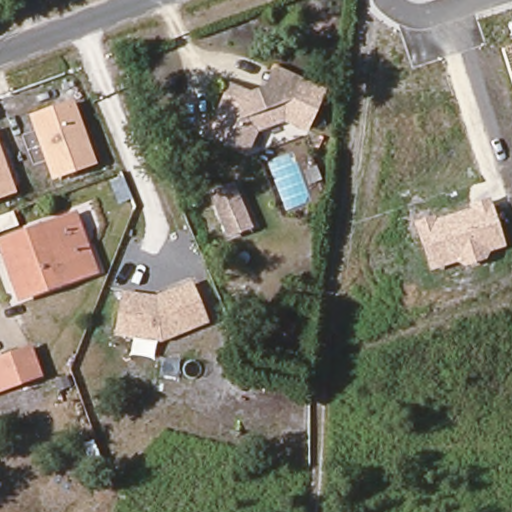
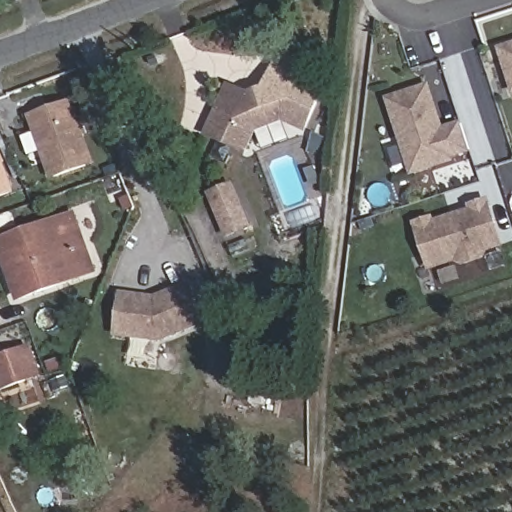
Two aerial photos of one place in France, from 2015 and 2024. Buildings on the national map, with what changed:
unchanged [(504,49),(512,47),(512,77),(504,49)]
unchanged [(243,90),(260,83),(269,65),(301,79),(317,86),(300,124),(278,113),(249,124),(239,146),(202,130),(223,81),(243,90)]
new [(410,178),(384,98),(430,83),(445,128),(462,122),(472,153),(454,158),(456,163),(410,178)]
unchanged [(95,164),(50,181),(28,115),(72,101),(95,164)]
unchanged [(0,198),(0,151),(15,192),(0,198)]
unchanged [(208,192),(230,183),(248,224),(226,233),(208,192)]
unchanged [(505,247),(489,252),(485,260),(463,266),(457,262),(429,270),(414,222),(435,214),(436,219),(469,208),(466,202),(487,196),(505,247)]
unchanged [(18,299),(2,253),(0,248),(0,241),(31,229),(75,214),(96,271),(18,299)]
unchanged [(207,322),(159,341),(156,340),(153,357),(129,353),(132,337),(113,334),(123,290),(153,295),(190,282),(207,322)]
unchanged [(0,360),(31,347),(41,372),(0,389),(0,360)]

